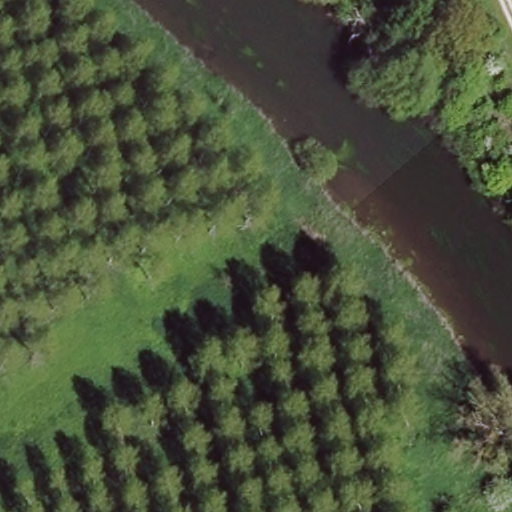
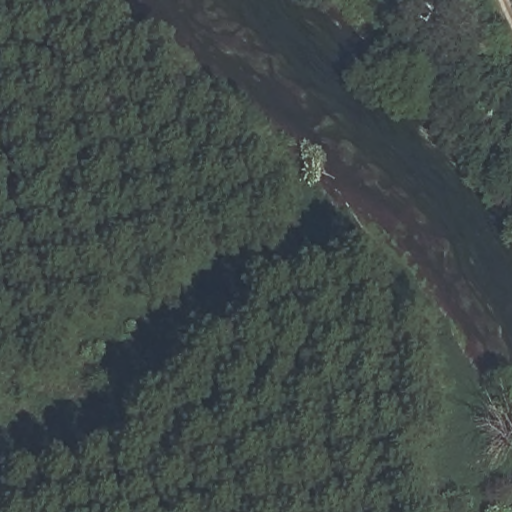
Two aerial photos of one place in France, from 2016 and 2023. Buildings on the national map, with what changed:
[]

